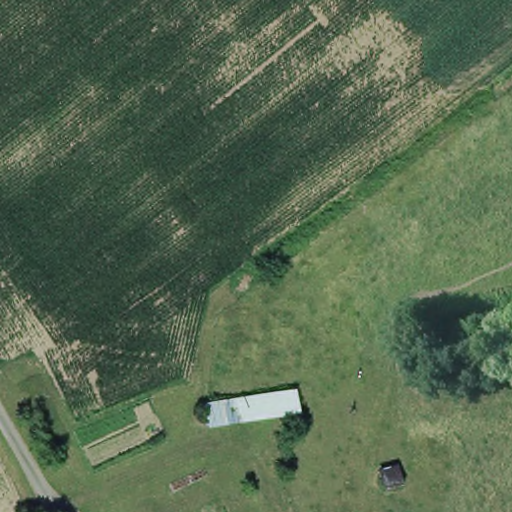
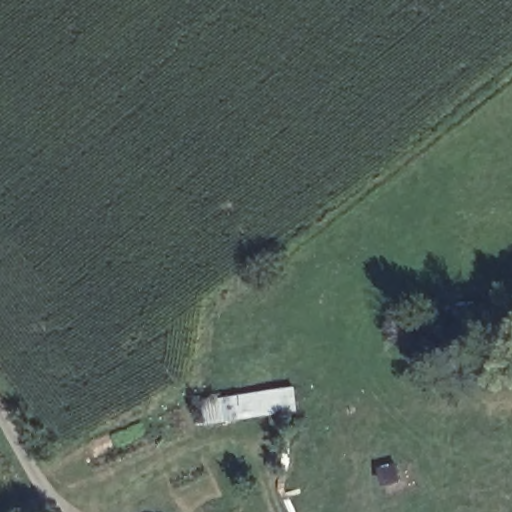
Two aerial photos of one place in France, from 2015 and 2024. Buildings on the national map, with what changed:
unchanged [(199,402),(296,387),(304,419),(209,431),(199,402)]
unchanged [(388,462),(393,476),(379,482),(373,468),(388,462)]

